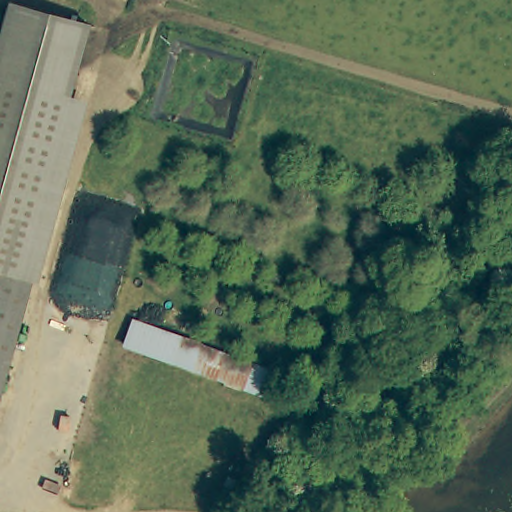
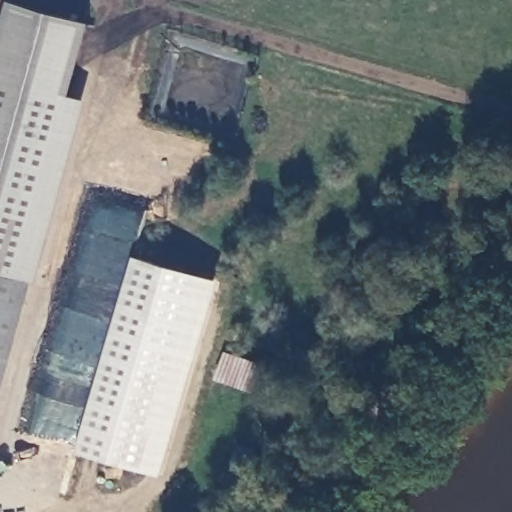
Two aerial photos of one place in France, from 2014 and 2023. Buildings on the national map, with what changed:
unchanged [(0,346),(0,26),(6,2),(87,24),(0,346)]
new [(136,256),(221,280),(164,476),(79,451),(136,256)]
new [(285,369),(275,400),(215,380),(227,350),(285,369)]

